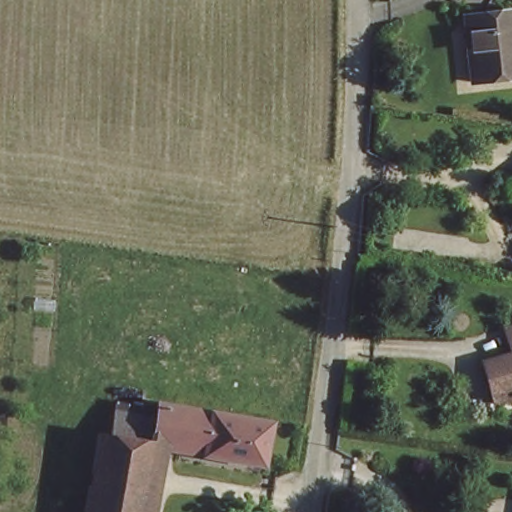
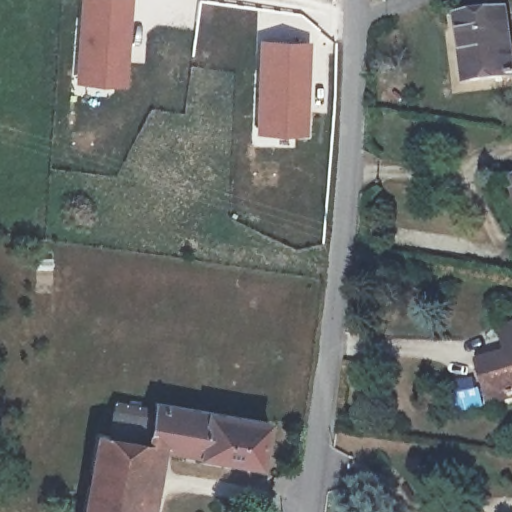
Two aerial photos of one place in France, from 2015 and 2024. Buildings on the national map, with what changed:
new [(75,84),(80,0),(131,0),(127,86),(75,84)]
unchanged [(472,80),(469,34),(459,34),(457,13),(509,6),(512,35),(512,76),(472,80)]
new [(307,136),(255,135),(258,39),(309,41),(307,136)]
unchanged [(485,354),(509,350),(508,334),(512,333),(512,394),(493,398),(485,354)]
unchanged [(219,408),(206,458),(155,448),(161,418),(164,396),(219,408)]
unchanged [(155,448),(143,512),(82,512),(96,430),(110,430),(115,407),(161,418),(155,448)]
unchanged [(271,471),(206,458),(219,408),(276,420),(271,471)]

